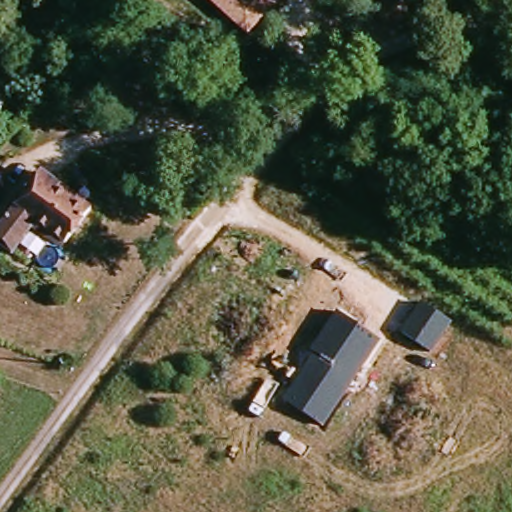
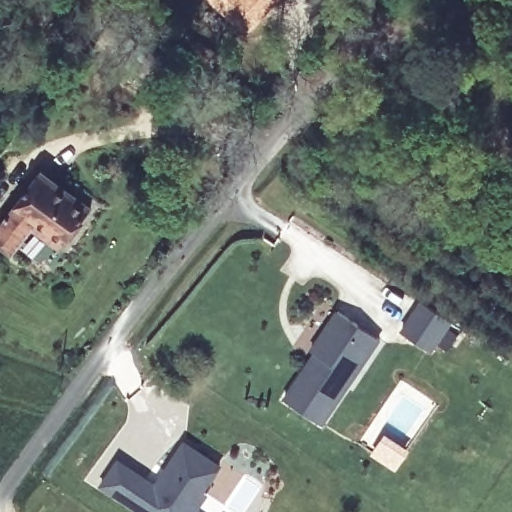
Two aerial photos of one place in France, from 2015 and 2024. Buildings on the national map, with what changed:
unchanged [(248,34),(210,0),(278,0),(248,34)]
unchanged [(62,247),(32,227),(13,253),(0,244),(0,226),(32,182),(42,170),(92,208),(88,213),(62,247)]
unchanged [(422,301),(452,322),(430,354),(401,334),(422,301)]
unchanged [(381,339),(324,426),(282,400),(313,354),(308,351),(336,309),(381,339)]
new [(206,491),(209,493),(197,512),(140,512),(99,485),(118,457),(155,483),(182,441),(223,466),(206,491)]

